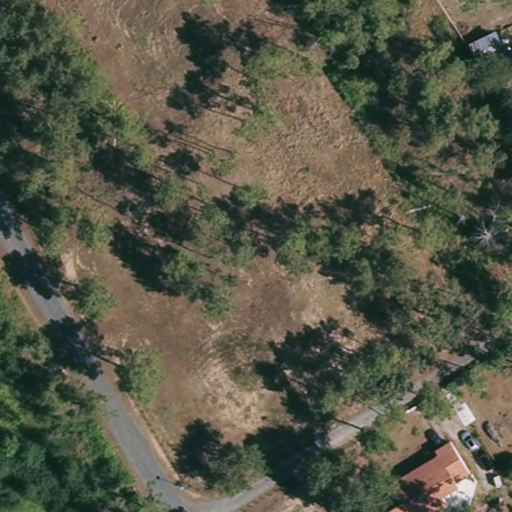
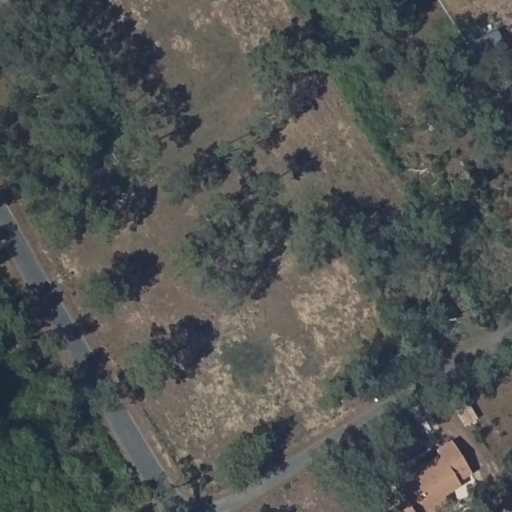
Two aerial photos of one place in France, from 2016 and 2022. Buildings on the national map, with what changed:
unchanged [(437,447),(433,442),(450,432),(469,463),(457,471),(459,476),(442,486),(448,495),(421,512),(403,512),(397,503),(406,497),(392,474),(437,447)]

